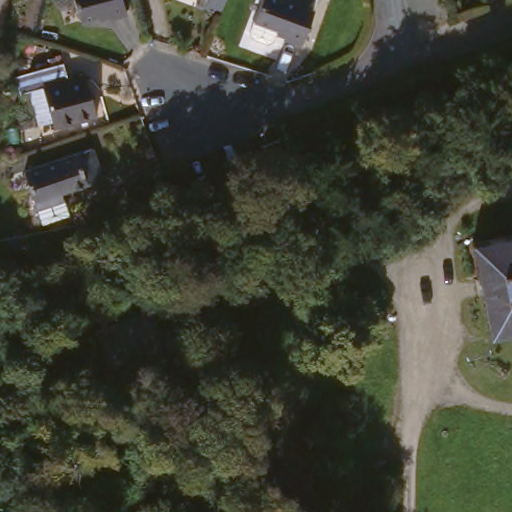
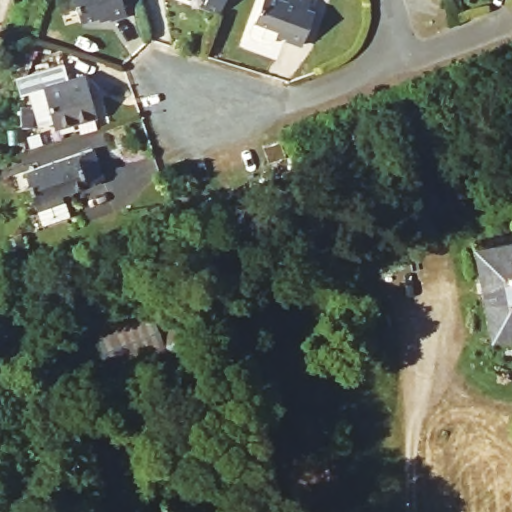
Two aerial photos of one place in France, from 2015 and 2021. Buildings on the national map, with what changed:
unchanged [(128,20),(113,25),(111,20),(101,22),(99,19),(81,25),(72,0),(122,0),(128,20)]
unchanged [(219,24),(204,18),(209,5),(197,0),(226,0),(219,24)]
unchanged [(264,57),(249,53),(246,46),(251,31),(252,27),(261,0),(265,0),(288,8),(290,0),(299,0),(304,1),(301,10),(311,14),(297,55),(272,47),(270,54),(264,57)]
unchanged [(98,118),(56,134),(41,95),(21,104),(13,87),(61,70),(66,86),(84,80),(98,118)]
unchanged [(277,162),(260,169),(254,152),(271,146),(277,162)]
unchanged [(34,205),(21,171),(88,147),(104,187),(61,203),(58,196),(34,205)]
unchanged [(491,335),(474,244),(512,237),(512,331),(491,335)]
unchanged [(154,348),(110,365),(101,342),(144,325),(154,348)]

